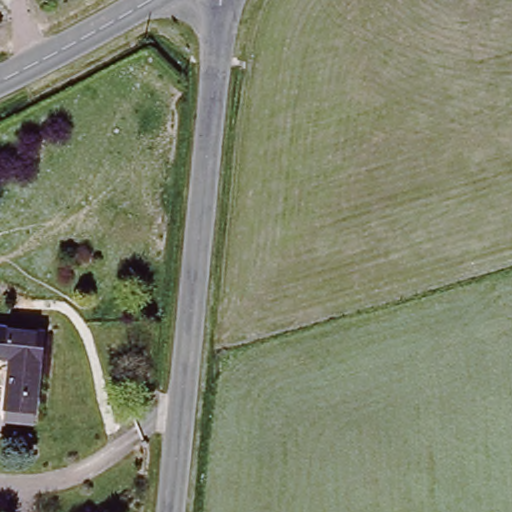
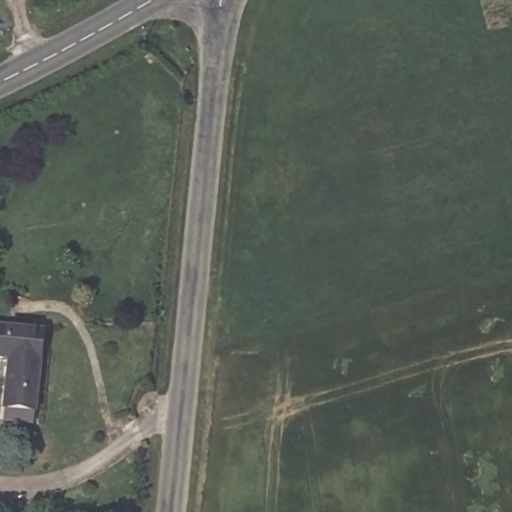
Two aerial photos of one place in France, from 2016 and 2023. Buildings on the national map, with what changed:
unchanged [(45,328),(37,406),(7,402),(12,355),(0,354),(0,323),(45,328)]

